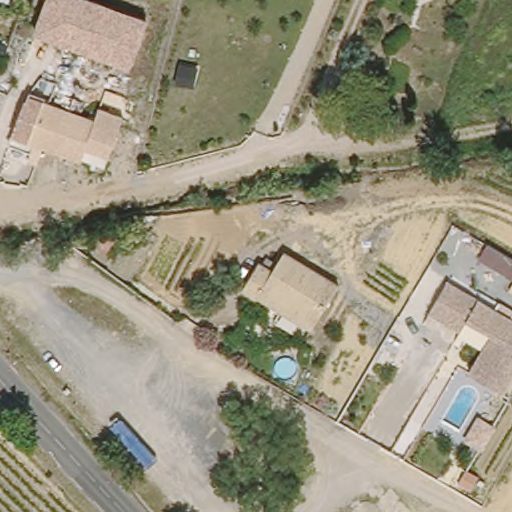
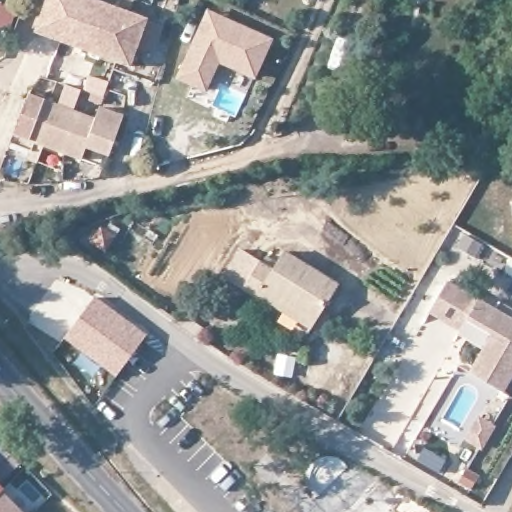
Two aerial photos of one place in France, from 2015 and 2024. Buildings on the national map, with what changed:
unchanged [(45,0),(93,0),(144,18),(127,66),(33,33),(45,0)]
new [(273,40),(255,80),(220,66),(206,92),(176,80),(206,9),(273,40)]
unchanged [(41,106),(96,117),(98,104),(123,110),(115,151),(90,146),(87,159),(32,148),(41,106)]
unchanged [(107,246),(117,255),(111,268),(93,259),(107,246)]
unchanged [(293,323),(275,313),(271,321),(260,314),(263,306),(255,300),(242,290),(260,260),(273,268),(283,253),(305,267),(336,286),(312,325),(306,334),(293,323)]
unchanged [(462,326),(433,306),(454,276),(483,297),(470,316),(462,326)]
new [(95,297),(148,336),(115,377),(65,339),(95,297)]
unchanged [(512,317),(512,373),(499,392),(467,370),(493,333),(470,316),(483,297),(512,317)]
new [(4,488),(2,491),(23,512),(0,512),(0,483),(4,488)]

